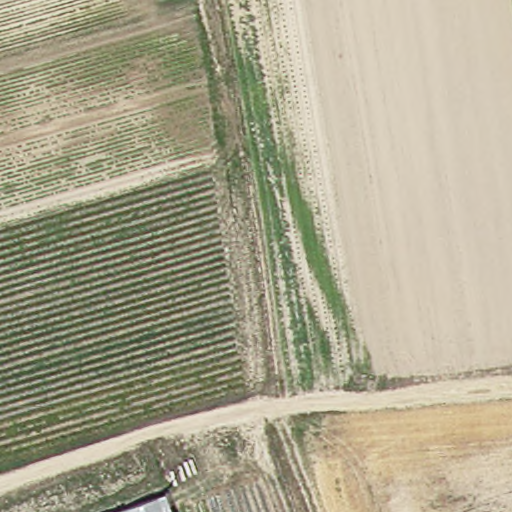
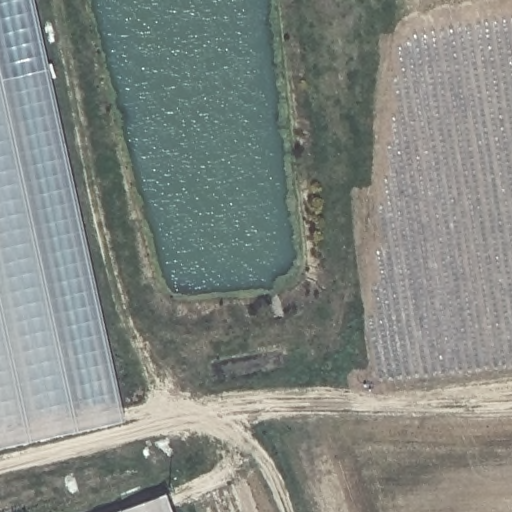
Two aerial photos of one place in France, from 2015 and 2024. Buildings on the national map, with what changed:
new [(31,0),(123,421),(0,448),(0,0),(31,0)]
new [(171,512),(121,512),(165,496),(171,512)]

